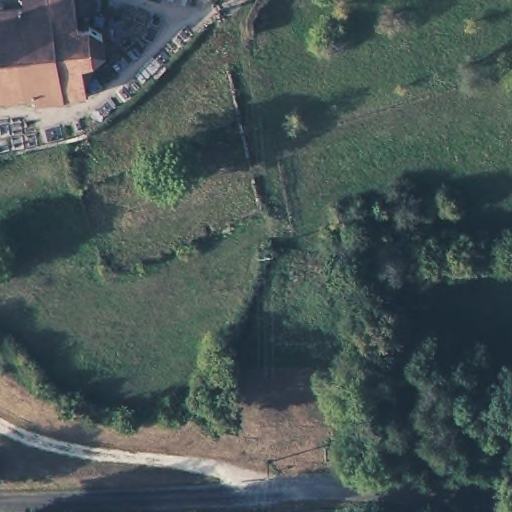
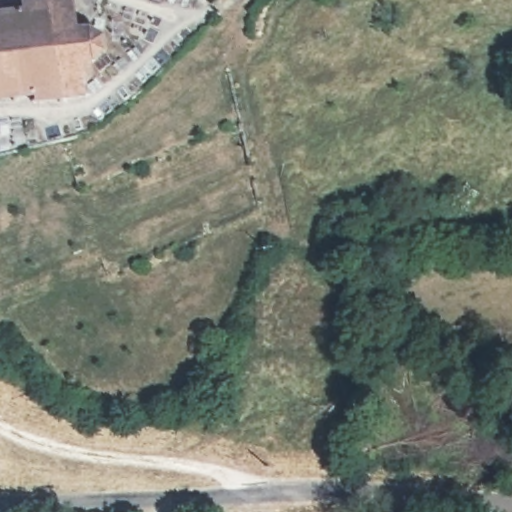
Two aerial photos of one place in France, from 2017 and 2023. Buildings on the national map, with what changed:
unchanged [(18,9),(68,1),(73,26),(82,25),(84,35),(98,42),(100,56),(87,65),(88,76),(79,90),(80,99),(30,106),(29,98),(0,102),(0,18),(17,16),(18,9)]

